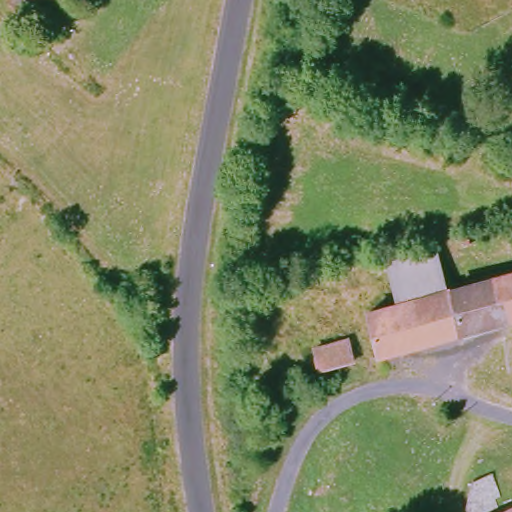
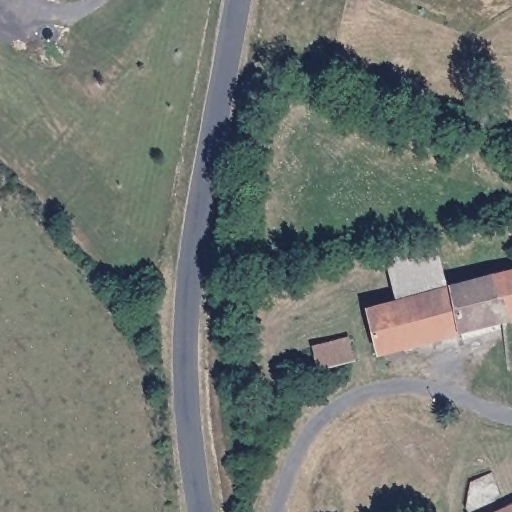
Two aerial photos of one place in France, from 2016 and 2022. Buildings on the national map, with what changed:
unchanged [(512,170),(512,186),(507,184),(512,170)]
unchanged [(381,254),(430,242),(444,294),(394,308),(381,254)]
unchanged [(490,283),(512,277),(512,322),(500,325),(490,283)]
unchanged [(444,294),(490,283),(500,325),(456,336),(444,294)]
unchanged [(364,315),(394,308),(444,294),(456,336),(376,357),(364,315)]
unchanged [(320,374),(313,350),(348,342),(353,364),(330,371),(320,374)]
unchanged [(463,507),(489,496),(496,512),(465,512),(463,507)]
unchanged [(512,506),(512,512),(500,512),(512,506)]

